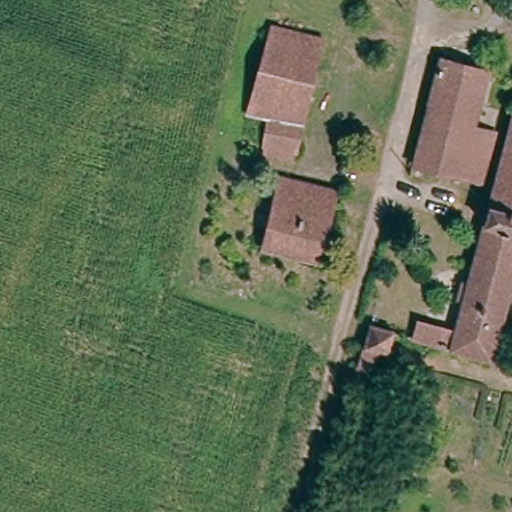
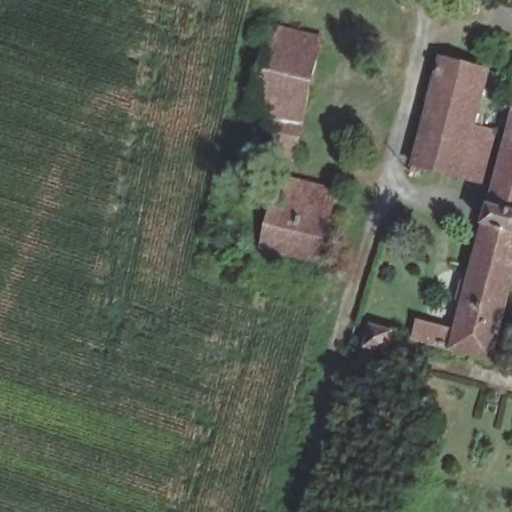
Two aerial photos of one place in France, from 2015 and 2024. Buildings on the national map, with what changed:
unchanged [(260,88),(278,25),(325,37),(322,54),(299,150),(270,142),(275,115),(253,110),(260,88)]
unchanged [(416,145),(440,64),(486,75),(471,131),(493,137),(479,185),(410,168),(416,145)]
unchanged [(505,143),(512,120),(512,236),(484,228),(505,143)]
unchanged [(317,258),(266,245),(283,177),(333,190),(317,258)]
unchanged [(420,325),(457,334),(484,228),(512,236),(512,282),(491,365),(414,344),(420,325)]
unchanged [(367,326),(392,333),(387,353),(377,351),(370,377),(356,365),(367,326)]

